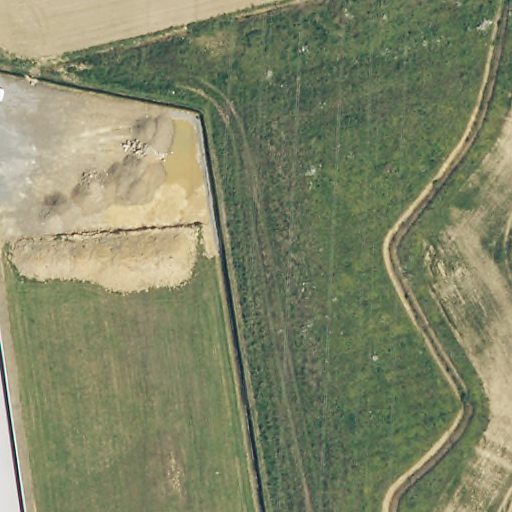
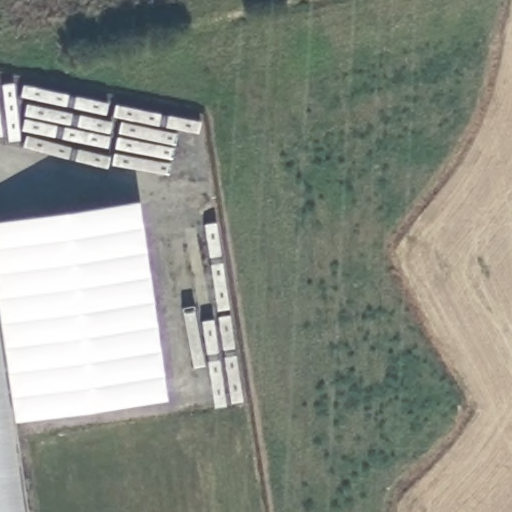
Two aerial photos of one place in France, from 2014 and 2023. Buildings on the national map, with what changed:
new [(0,358),(0,223),(137,202),(166,401),(10,424),(0,358)]
unchanged [(0,512),(0,360),(22,512),(0,512)]

